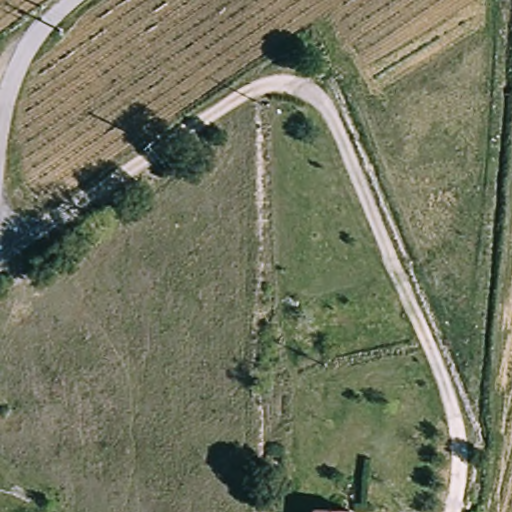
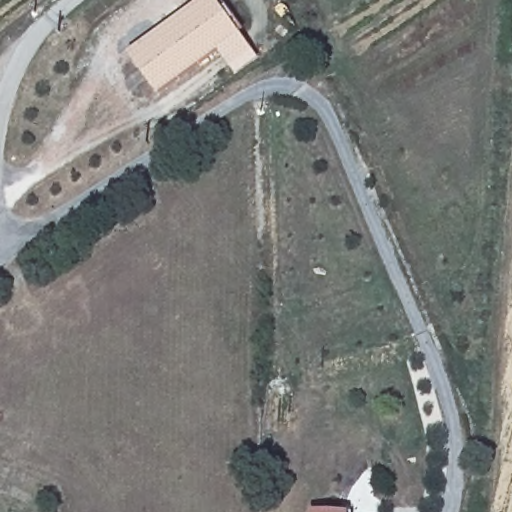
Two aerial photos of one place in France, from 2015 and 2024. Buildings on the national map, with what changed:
new [(132,59),(217,0),(245,40),(160,100),(132,59)]
new [(257,59),(235,74),(222,56),(245,40),(257,59)]
unchanged [(312,511),(348,512),(311,512),(312,511)]

